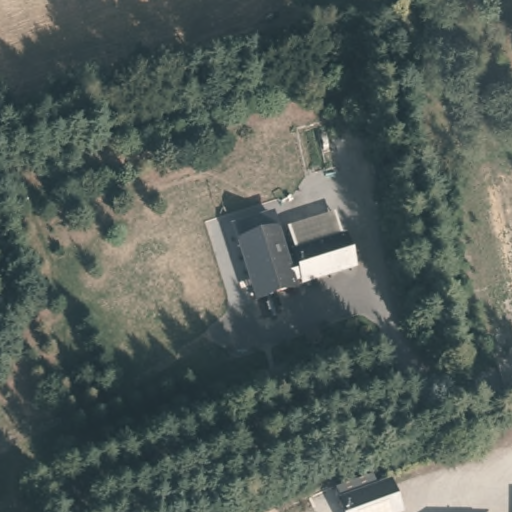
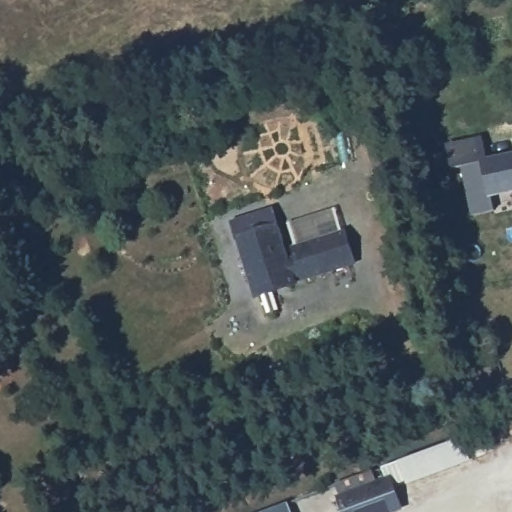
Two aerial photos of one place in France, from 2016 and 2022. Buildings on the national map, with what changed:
unchanged [(415,31),(426,61),(370,82),(359,51),(415,31)]
new [(488,163),(512,158),(512,191),(493,195),(496,211),(473,216),(463,168),(455,170),(450,148),(483,141),(488,163)]
unchanged [(268,215),(287,265),(298,260),(295,251),(342,233),(352,262),(305,279),(304,274),(292,279),(295,286),(259,299),(233,228),(268,215)]
unchanged [(341,496),(395,477),(405,511),(402,512),(347,512),(341,496)]
new [(286,502),(290,512),(259,512),(286,502)]

